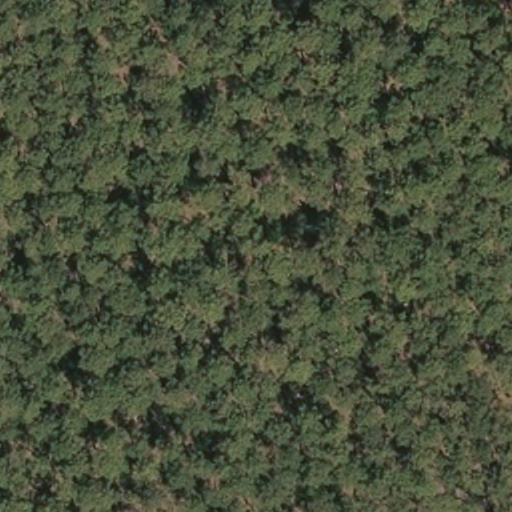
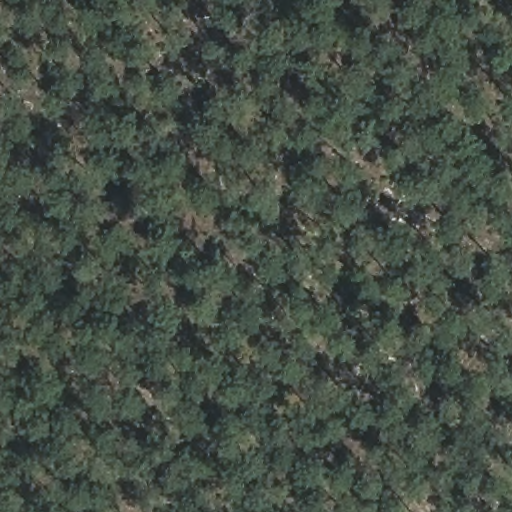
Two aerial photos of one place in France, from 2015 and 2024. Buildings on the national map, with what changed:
[]

